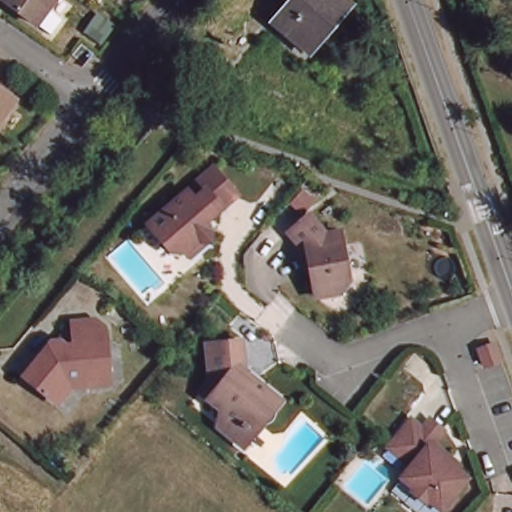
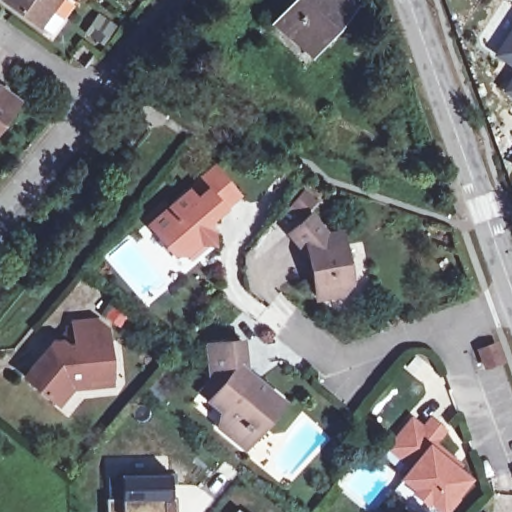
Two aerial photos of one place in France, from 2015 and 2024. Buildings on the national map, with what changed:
unchanged [(2,0),(51,0),(45,9),(34,23),(27,19),(2,0)]
unchanged [(305,56),(270,25),(291,0),(339,0),(347,8),(305,56)]
new [(493,54),(512,25),(512,66),(493,54)]
new [(502,90),(512,73),(512,97),(502,90)]
unchanged [(0,121),(0,94),(13,104),(0,121)]
unchanged [(172,255),(147,227),(150,224),(145,217),(163,202),(169,209),(214,171),(237,197),(205,223),(212,231),(210,245),(189,262),(184,256),(172,255)]
unchanged [(308,253),(289,230),(309,213),(326,233),(340,230),(349,279),(340,291),(315,295),(308,253)]
unchanged [(45,389),(47,387),(30,372),(46,352),(56,351),(55,344),(56,339),(65,336),(75,323),(75,319),(99,316),(108,323),(113,372),(90,374),(90,381),(75,383),(60,399),(54,393),(52,394),(45,389)]
unchanged [(498,341),(505,362),(489,368),(482,347),(498,341)]
unchanged [(232,441),(215,427),(219,411),(198,393),(209,380),(207,344),(242,343),(245,373),(241,378),(248,383),(257,383),(281,403),(261,427),(242,449),(232,441)]
unchanged [(437,510),(425,499),(422,501),(410,491),(412,488),(400,477),(411,465),(387,446),(410,419),(422,428),(429,419),(442,430),(430,442),(446,456),(442,459),(465,478),(454,491),(454,500),(446,509),(437,510)]
new [(175,475),(174,503),(177,503),(177,512),(108,512),(108,498),(122,498),(122,477),(175,475)]

